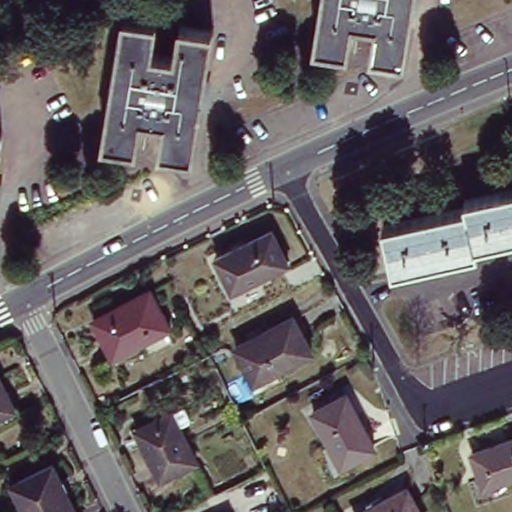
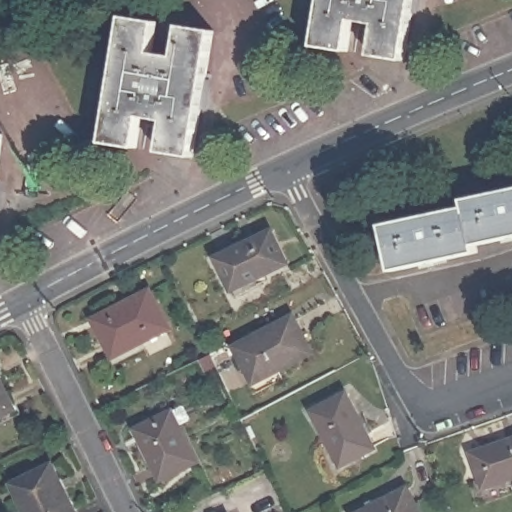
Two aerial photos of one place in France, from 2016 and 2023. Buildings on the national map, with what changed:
unchanged [(375,25),(356,22),(350,52),(315,46),(322,0),(417,0),(406,61),(370,55),(375,25)]
unchanged [(164,116),(144,113),(139,145),(102,138),(124,9),(160,15),(155,45),(175,49),(180,19),(216,24),(195,154),(159,147),(164,116)]
unchanged [(5,133),(0,175),(0,132),(5,133)]
unchanged [(464,199),(512,189),(512,237),(477,245),(478,251),(392,270),(383,224),(465,205),(464,199)]
unchanged [(272,229),(288,262),(232,290),(215,256),(272,229)]
unchanged [(150,293),(170,332),(112,361),(92,322),(150,293)]
unchanged [(293,316),(311,351),(255,382),(236,347),(293,316)]
unchanged [(15,410),(0,417),(0,378),(15,410)]
unchanged [(347,387),(375,441),(343,460),(314,405),(347,387)]
unchanged [(190,417),(179,423),(196,460),(161,477),(143,441),(136,428),(141,426),(184,405),(190,417)]
unchanged [(512,477),(485,486),(472,452),(512,439),(512,477)]
unchanged [(78,512),(30,512),(13,478),(52,459),(78,512)]
unchanged [(420,512),(362,512),(407,488),(420,512)]

